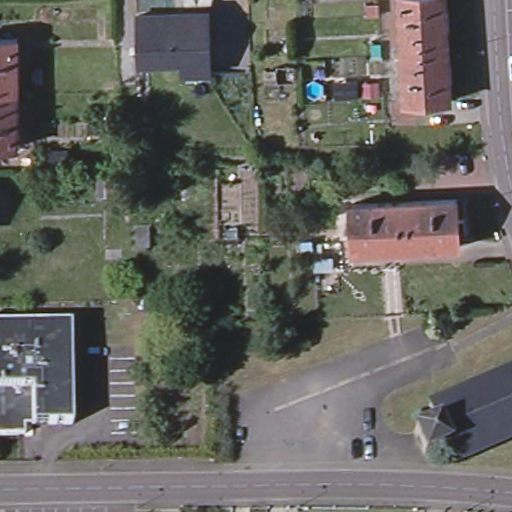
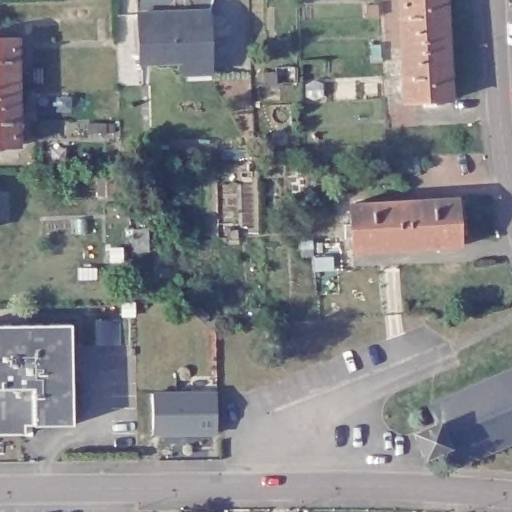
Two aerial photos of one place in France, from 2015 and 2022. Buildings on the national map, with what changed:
unchanged [(449,0),(450,26),(405,57),(402,0),(449,0)]
unchanged [(173,13),(173,17),(185,17),(185,12),(207,12),(210,80),(183,80),(182,60),(138,61),(136,14),(173,13)]
unchanged [(450,26),(453,96),(407,97),(405,57),(450,26)]
unchanged [(22,34),(23,87),(0,88),(0,34),(22,34)]
unchanged [(23,87),(25,142),(0,142),(0,88),(23,87)]
unchanged [(460,196),(462,242),(358,249),(355,202),(460,196)]
unchanged [(76,322),(76,422),(37,423),(37,387),(0,387),(0,323),(76,322)]
unchanged [(512,370),(512,437),(460,460),(452,442),(430,453),(420,430),(442,420),(435,403),(512,370)]
unchanged [(29,423),(29,431),(0,431),(0,387),(37,387),(37,423),(29,423)]
new [(216,391),(218,435),(152,435),(153,392),(216,391)]

